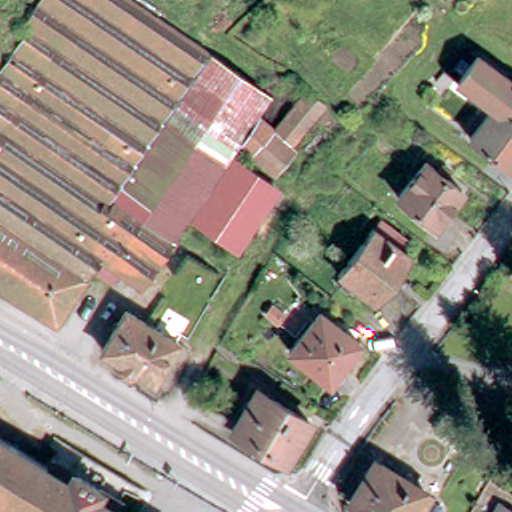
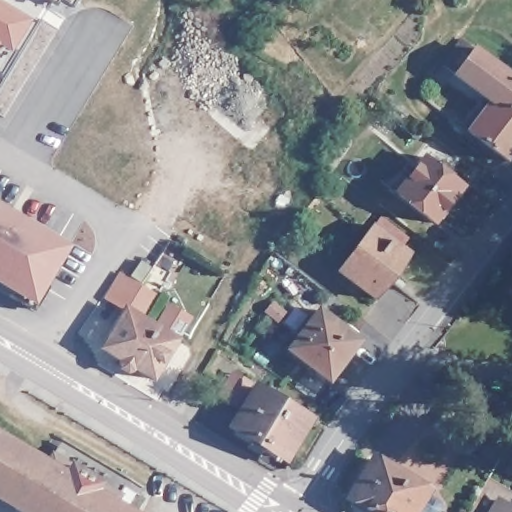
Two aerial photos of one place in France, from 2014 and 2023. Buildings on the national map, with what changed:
new [(72,12),(54,2),(0,88),(0,0),(79,0),(72,12)]
demolished [(102,264),(60,326),(0,291),(0,83),(34,31),(29,29),(48,0),(126,0),(275,102),(260,125),(274,136),(292,152),(297,156),(276,179),(242,150),(235,160),(276,190),(233,252),(191,223),(168,256),(162,265),(145,291),(126,279),(109,268),(102,264)]
unchanged [(511,169),(472,139),(495,110),(460,82),(446,71),(466,45),(480,56),(512,81),(512,167),(511,169)]
new [(253,158),(273,136),(289,151),(271,173),(253,158)]
unchanged [(439,230),(400,202),(429,166),(466,195),(439,230)]
new [(35,307),(0,286),(0,206),(71,249),(35,307)]
unchanged [(380,307),(342,278),(377,234),(414,262),(380,307)]
unchanged [(329,384),(289,352),(320,312),(360,344),(329,384)]
unchanged [(154,342),(167,321),(187,334),(152,390),(101,360),(124,324),(154,342)]
unchanged [(289,465),(239,435),(262,396),(312,427),(289,465)]
unchanged [(437,428),(436,430),(432,426),(450,404),(471,421),(454,442),(437,428)]
unchanged [(50,458),(119,500),(114,507),(122,512),(16,512),(0,502),(0,438),(45,466),(50,458)]
unchanged [(366,512),(357,506),(380,466),(431,496),(421,512),(366,512)]
unchanged [(510,512),(499,512),(502,507),(510,512)]

